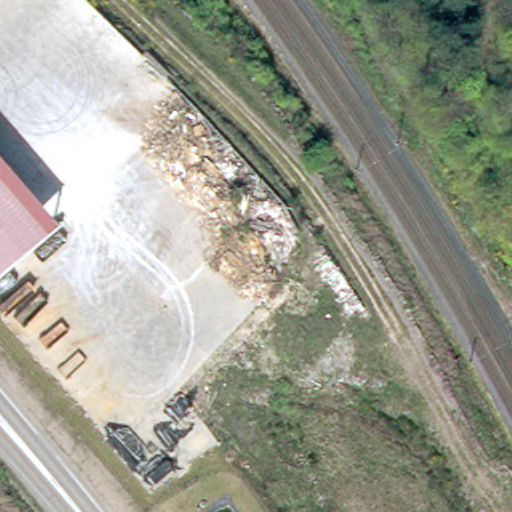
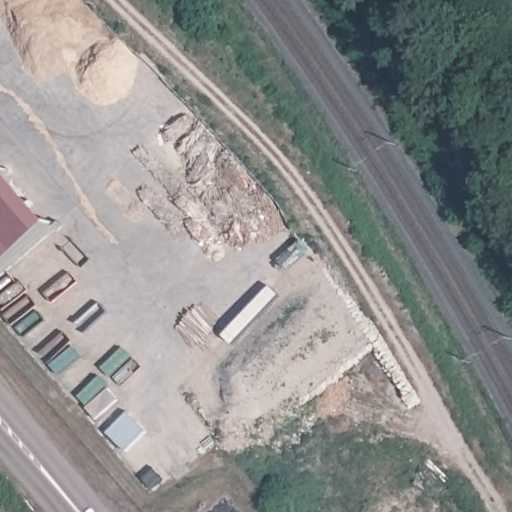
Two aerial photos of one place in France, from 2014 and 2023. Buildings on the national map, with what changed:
unchanged [(0,266),(0,161),(52,221),(0,266)]

